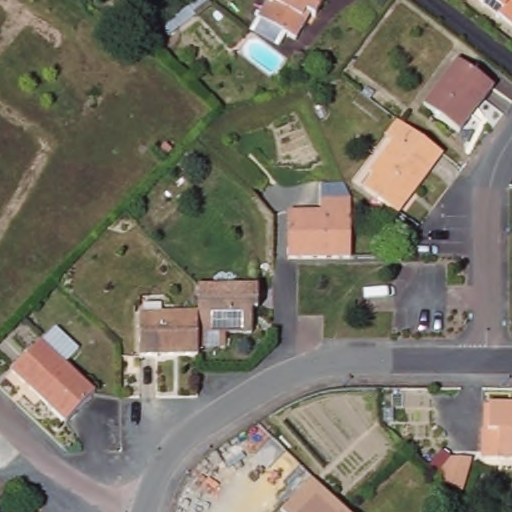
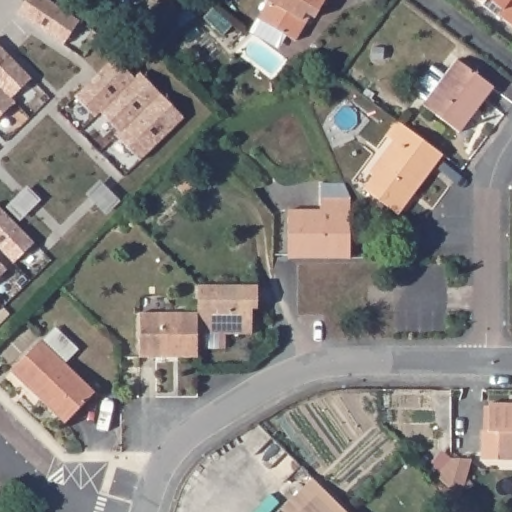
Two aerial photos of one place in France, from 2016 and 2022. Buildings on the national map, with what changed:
new [(48,0),(80,22),(64,45),(17,13),(26,0),(48,0)]
unchanged [(314,15),(299,40),(261,17),(271,0),(329,0),(319,17),(314,15)]
unchanged [(512,0),(512,28),(474,0),(512,0)]
new [(32,79),(12,99),(15,102),(0,117),(0,46),(32,79)]
new [(116,57),(135,78),(141,72),(184,117),(141,161),(117,136),(121,132),(101,112),(95,117),(75,97),(116,57)]
unchanged [(458,59),(493,86),(484,97),(459,131),(424,105),(458,59)]
unchanged [(373,180),(369,177),(404,129),(441,157),(442,158),(397,217),(364,192),(373,180)]
unchanged [(321,212),(321,186),(344,186),(351,200),(351,258),(287,259),(287,212),(321,212)]
new [(35,243),(14,263),(0,248),(0,207),(35,243)]
new [(7,270),(0,277),(0,263),(7,270)]
unchanged [(198,312),(198,287),(198,285),(256,285),(256,307),(251,307),(251,332),(198,332),(198,312)]
unchanged [(198,312),(198,332),(198,356),(138,355),(138,312),(198,312)]
unchanged [(43,339),(67,362),(96,390),(67,421),(43,397),(14,370),(43,339)]
unchanged [(494,428),(500,428),(500,400),(512,400),(512,456),(493,456),(494,428)]
unchanged [(465,457),(484,457),(471,495),(449,473),(465,457)]
unchanged [(293,498),(312,478),(347,512),(283,512),(281,510),(293,498)]

